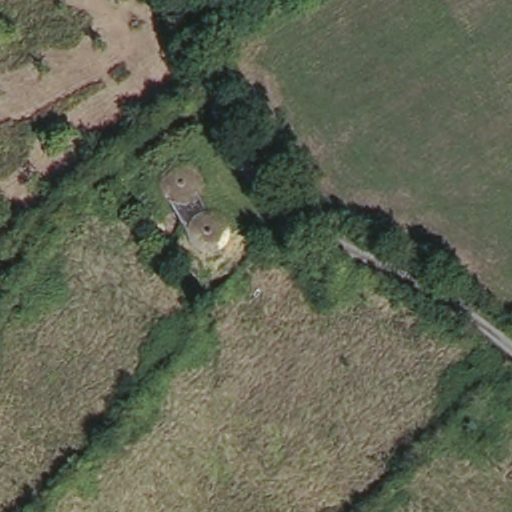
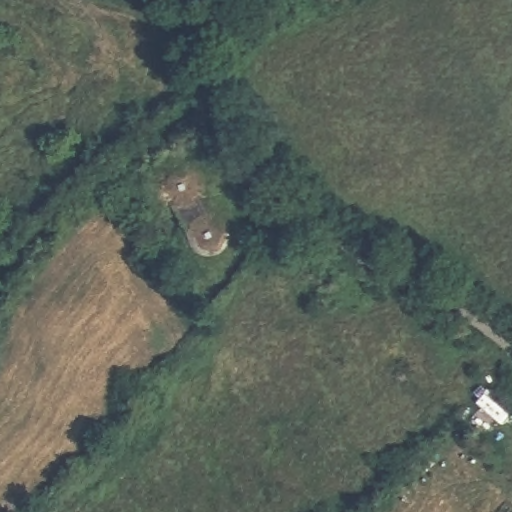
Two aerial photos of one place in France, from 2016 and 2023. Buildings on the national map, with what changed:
[]

